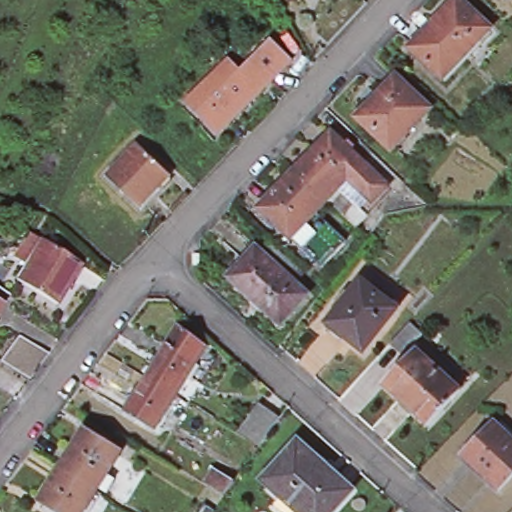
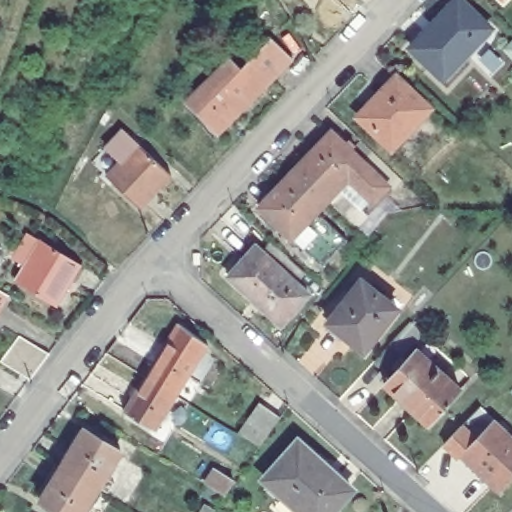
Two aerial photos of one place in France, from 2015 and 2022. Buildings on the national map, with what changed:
unchanged [(445,81),(440,76),(407,45),(452,0),(461,0),(487,26),(476,38),(481,43),(445,81)]
unchanged [(497,0),(504,0),(501,4),(497,0)]
unchanged [(208,79),(234,53),(245,63),(253,53),(267,38),(288,58),(275,73),(275,74),(266,84),(240,110),(208,79)]
unchanged [(388,145),(356,115),(393,76),(425,106),(388,145)]
unchanged [(240,110),(223,128),(191,96),(208,79),(240,110)]
unchanged [(288,170),(324,133),(343,151),(356,164),(320,202),(288,170)]
unchanged [(132,141),(167,173),(136,205),(102,173),(132,141)]
unchanged [(392,183),(349,229),(320,202),(356,164),(343,151),(352,143),(392,183)]
unchanged [(320,202),(310,213),(285,240),(252,209),(288,170),(320,202)]
unchanged [(339,240),(314,267),(285,240),(310,213),(339,240)]
unchanged [(54,301),(14,276),(23,262),(12,254),(27,230),(38,237),(78,262),(54,301)]
unchanged [(280,320),(227,272),(255,243),(306,290),(280,320)]
unchanged [(365,351),(326,322),(358,279),(396,309),(365,351)]
unchanged [(0,299),(0,287),(5,290),(0,299)]
unchanged [(420,330),(401,351),(388,339),(408,318),(420,330)]
unchanged [(149,379),(183,325),(208,349),(178,397),(149,379)]
unchanged [(31,382),(1,364),(21,338),(51,356),(31,382)]
unchanged [(458,388),(426,422),(413,409),(411,411),(395,397),(397,394),(383,381),(415,347),(458,388)]
unchanged [(178,397),(156,431),(128,413),(149,379),(178,397)]
unchanged [(283,422),(263,449),(241,436),(262,407),(283,422)]
unchanged [(512,438),(512,473),(498,487),(461,453),(492,419),(512,438)]
unchanged [(58,464),(83,428),(118,451),(94,488),(58,464)]
unchanged [(336,512),(302,512),(267,480),(300,444),(354,492),(336,512)]
unchanged [(94,488),(78,512),(59,512),(36,497),(58,464),(94,488)]
unchanged [(228,498),(208,486),(218,473),(238,484),(228,498)]
unchanged [(215,512),(204,512),(208,507),(215,512)]

